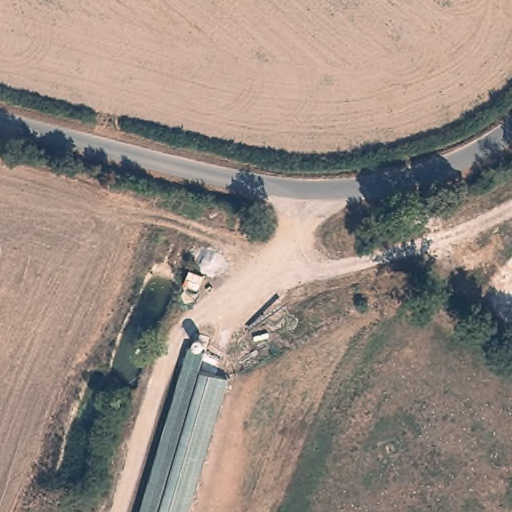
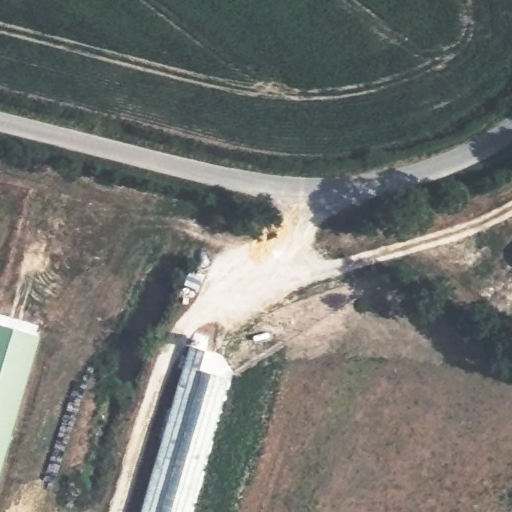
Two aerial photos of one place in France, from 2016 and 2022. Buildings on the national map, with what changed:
new [(35,335),(0,457),(0,325),(35,335)]
unchanged [(198,372),(230,380),(194,512),(144,512),(188,348),(203,350),(198,372)]

